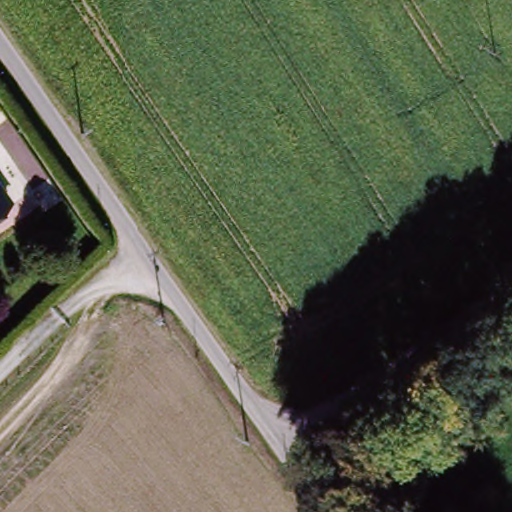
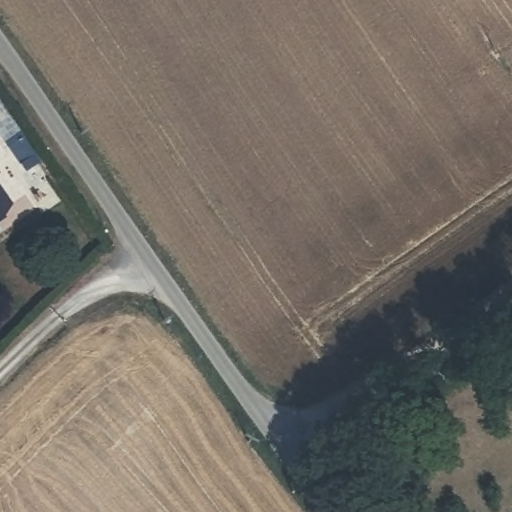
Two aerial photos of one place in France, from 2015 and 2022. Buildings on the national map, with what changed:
unchanged [(5,206),(0,209),(0,200),(5,206)]

